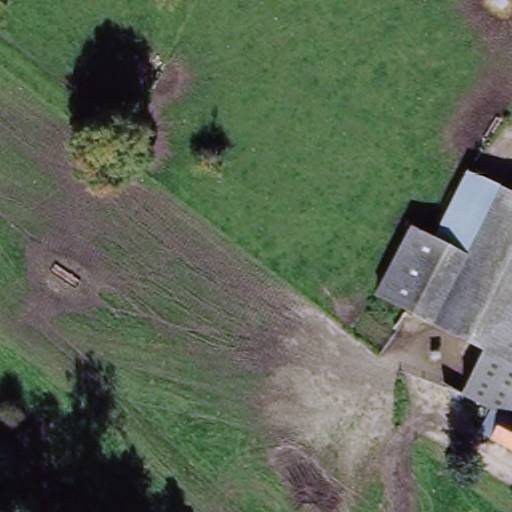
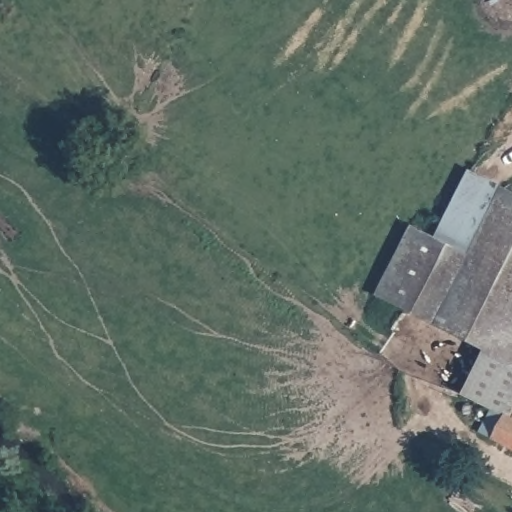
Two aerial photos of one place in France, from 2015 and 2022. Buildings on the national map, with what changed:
unchanged [(382,291),(450,159),(507,188),(512,190),(512,360),(490,348),(439,321),(382,291)]
unchanged [(490,348),(512,360),(512,409),(509,414),(465,390),(490,348)]
unchanged [(485,429),(465,418),(453,412),(465,390),(509,414),(512,416),(512,444),(485,429)]

